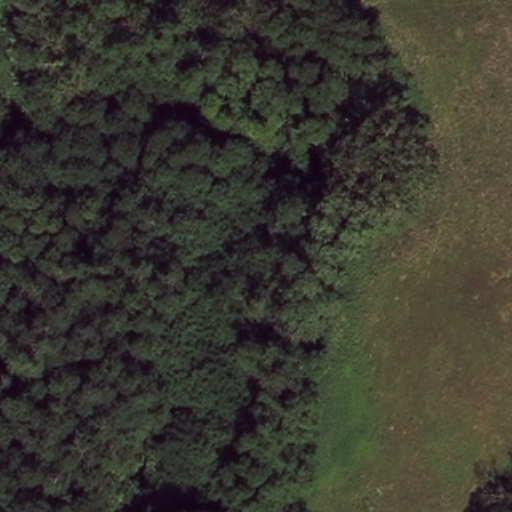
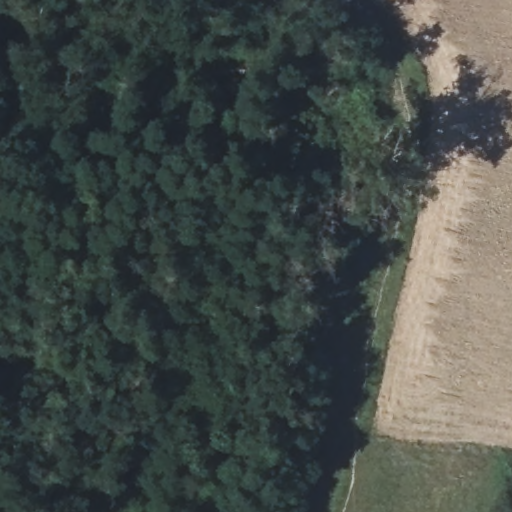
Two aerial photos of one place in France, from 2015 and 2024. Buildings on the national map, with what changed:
[]

